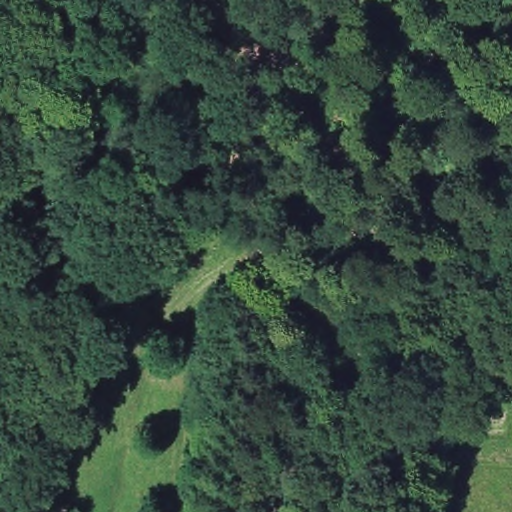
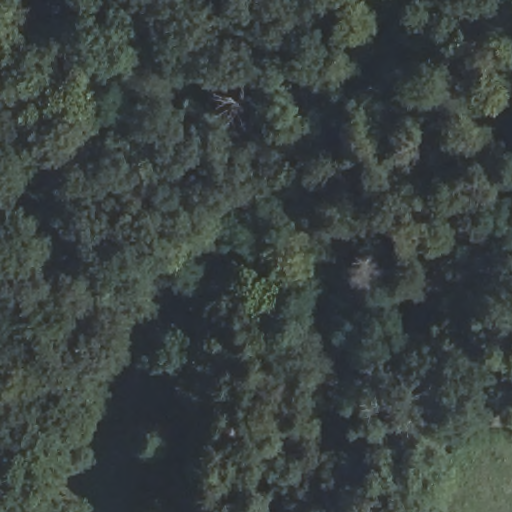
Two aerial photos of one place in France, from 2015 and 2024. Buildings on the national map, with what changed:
unchanged [(289,484),(294,500),(289,502),(283,486),(289,484)]

